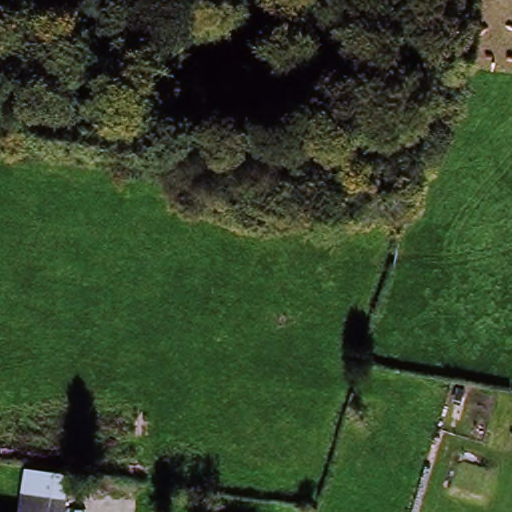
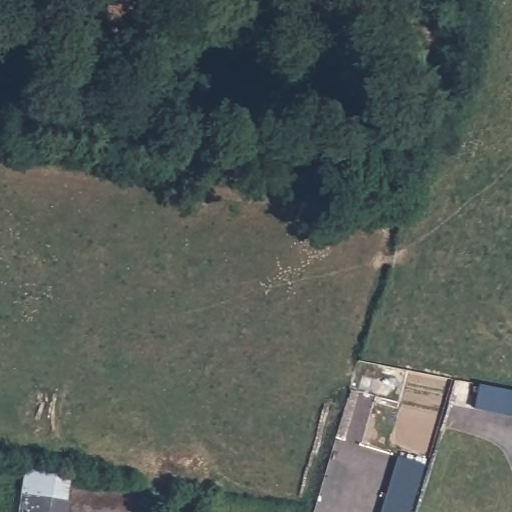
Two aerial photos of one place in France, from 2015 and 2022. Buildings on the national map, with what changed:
new [(397,457),(426,465),(411,512),(380,512),(397,457)]
unchanged [(25,468),(68,473),(65,499),(21,495),(25,468)]
unchanged [(24,501),(61,506),(60,512),(22,512),(24,501)]

